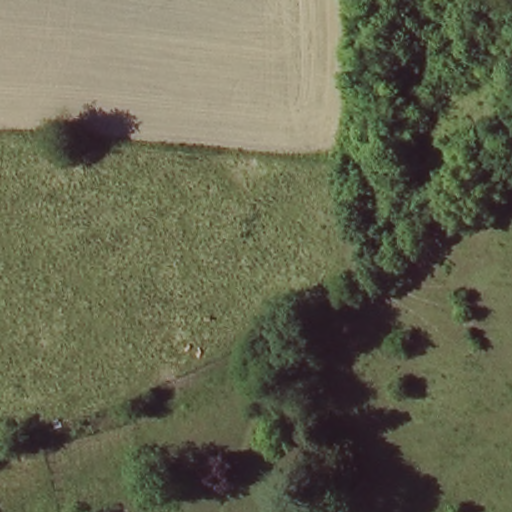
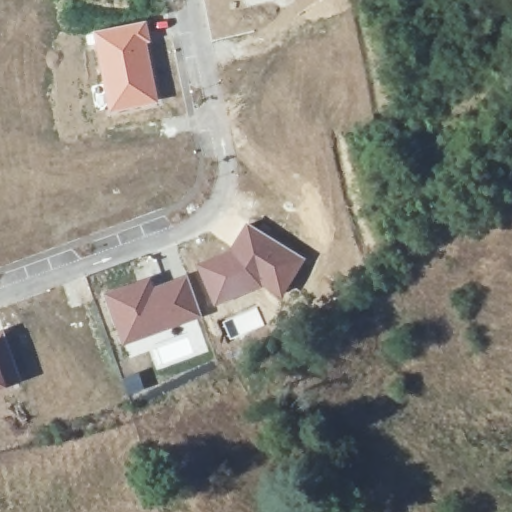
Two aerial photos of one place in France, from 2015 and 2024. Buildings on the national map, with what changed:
new [(147,20),(152,43),(149,44),(159,102),(108,112),(92,31),(147,20)]
new [(228,249),(247,222),(307,258),(281,300),(263,287),(215,307),(196,263),(228,249)]
new [(151,277),(154,285),(187,274),(203,317),(123,347),(103,293),(151,277)]
new [(4,331),(17,367),(12,369),(10,364),(2,367),(9,385),(0,388),(0,332),(4,331)]

